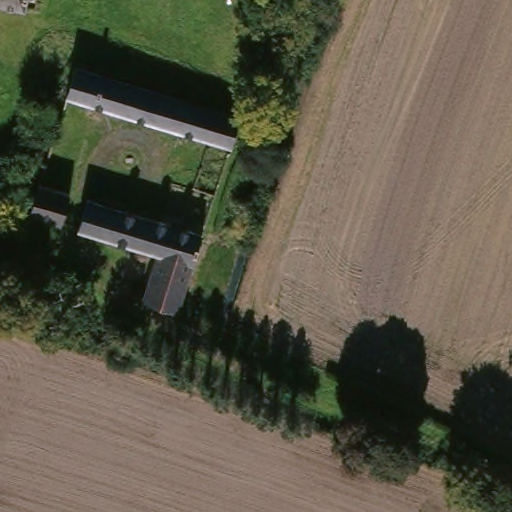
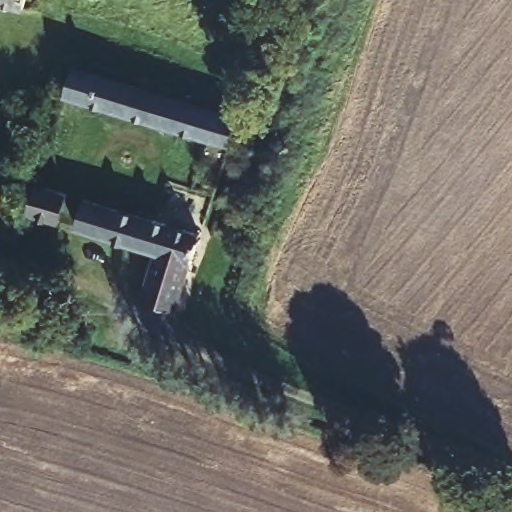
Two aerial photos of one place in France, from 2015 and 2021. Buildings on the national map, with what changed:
unchanged [(0,4),(0,0),(25,0),(23,9),(0,4)]
unchanged [(105,75),(193,102),(237,115),(228,143),(65,94),(74,66),(74,65),(105,75)]
unchanged [(32,180),(57,189),(49,217),(23,209),(32,180)]
unchanged [(202,236),(179,312),(145,302),(159,255),(81,227),(90,199),(202,236)]

